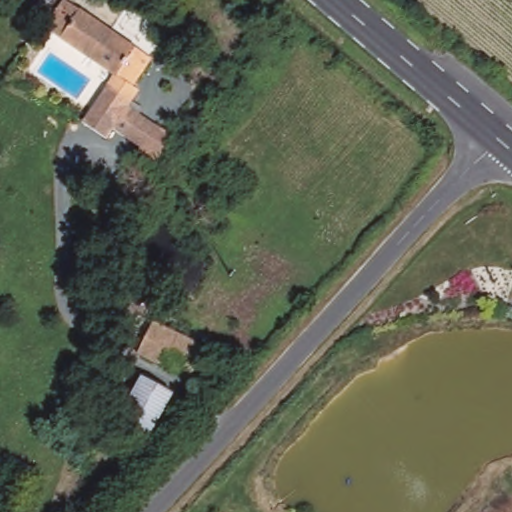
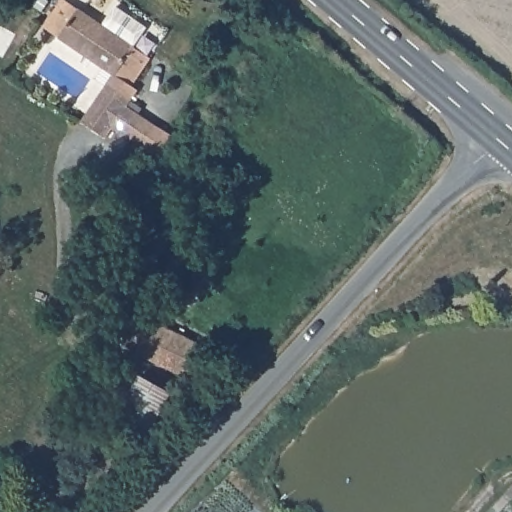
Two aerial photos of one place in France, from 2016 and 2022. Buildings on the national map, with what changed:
unchanged [(144,158),(126,144),(129,141),(113,130),(105,141),(81,123),(116,75),(47,28),(65,2),(152,63),(134,89),(129,85),(121,96),(132,104),(130,106),(145,118),(163,130),(144,158)]
unchanged [(183,340),(204,352),(187,383),(139,356),(154,323),(183,340)]
unchanged [(174,396),(150,442),(119,426),(144,379),(174,396)]

